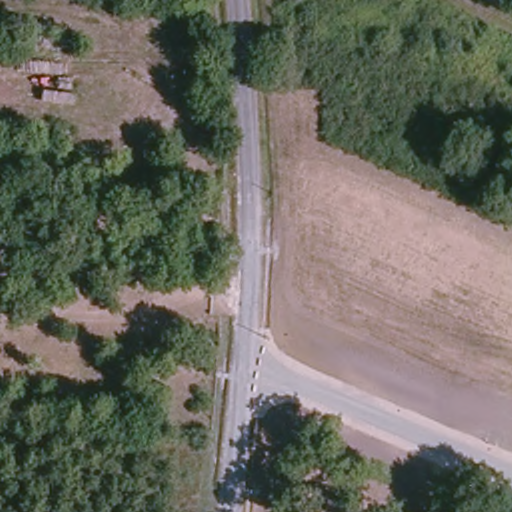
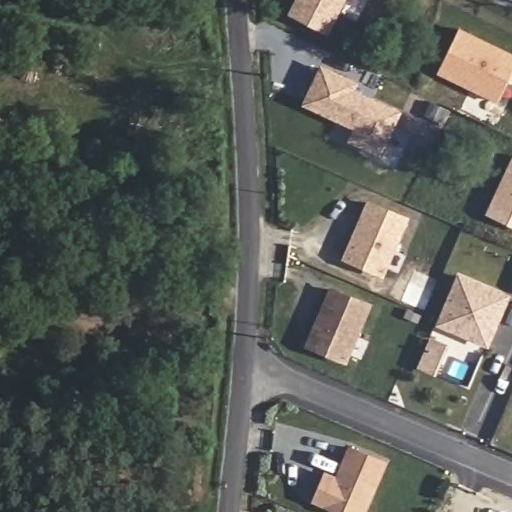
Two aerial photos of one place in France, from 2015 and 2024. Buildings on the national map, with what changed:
new [(290,15),(297,0),(343,0),(326,33),(290,15)]
new [(459,27),(512,54),(512,71),(497,103),(435,74),(459,27)]
new [(321,62),(349,76),(345,85),(402,111),(381,157),(347,141),(353,129),(302,105),(321,62)]
new [(487,216),(512,164),(512,227),(487,216)]
new [(409,218),(383,278),(341,258),(367,200),(409,218)]
new [(457,272),(510,296),(487,348),(435,326),(457,272)]
new [(372,305),(345,363),(302,345),(330,286),(372,305)]
new [(330,472),(341,477),(355,446),(390,460),(367,512),(352,512),(319,498),(330,472)]

